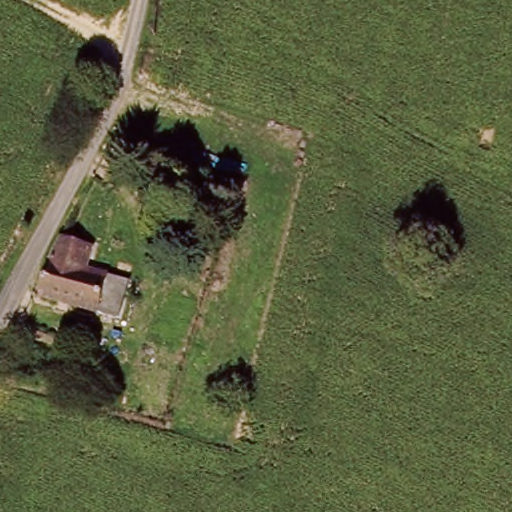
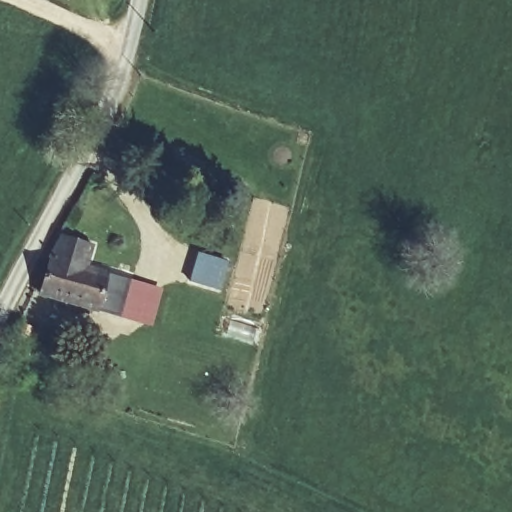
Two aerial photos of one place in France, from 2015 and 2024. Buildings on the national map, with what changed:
unchanged [(27,296),(47,240),(74,248),(69,266),(118,275),(111,311),(27,296)]
new [(221,291),(188,281),(197,252),(228,261),(221,291)]
new [(153,323),(111,311),(118,275),(162,290),(153,323)]
unchanged [(8,326),(15,317),(26,322),(22,331),(8,326)]

